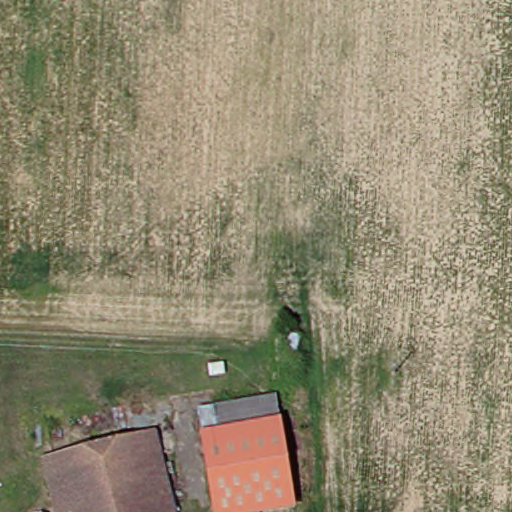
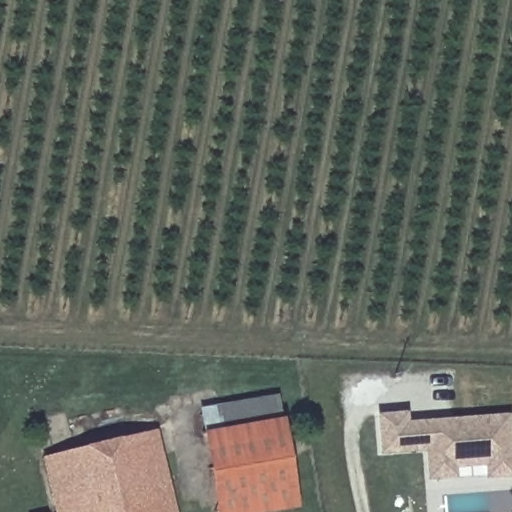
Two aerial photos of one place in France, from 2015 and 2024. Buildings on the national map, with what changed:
unchanged [(280,421),(227,431),(207,435),(202,411),(220,407),(275,397),(280,421)]
new [(508,476),(484,477),(483,464),(448,468),(449,478),(424,480),(422,451),(402,453),(377,456),(374,420),(399,418),(399,428),(419,426),(502,419),(508,476)]
unchanged [(227,431),(280,421),(296,509),(280,512),(215,512),(200,436),(207,435),(227,431)]
unchanged [(47,454),(160,433),(175,512),(56,512),(48,457),(47,454)]

